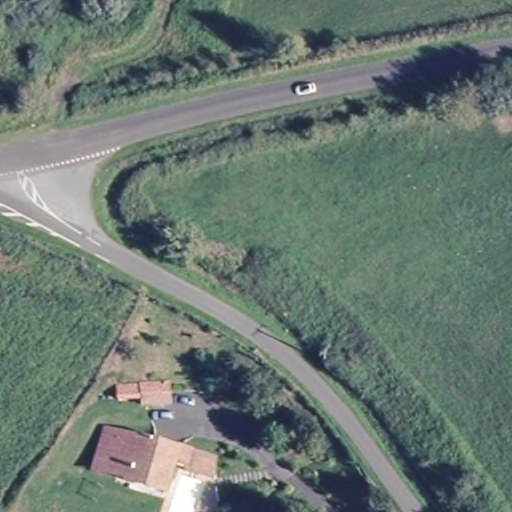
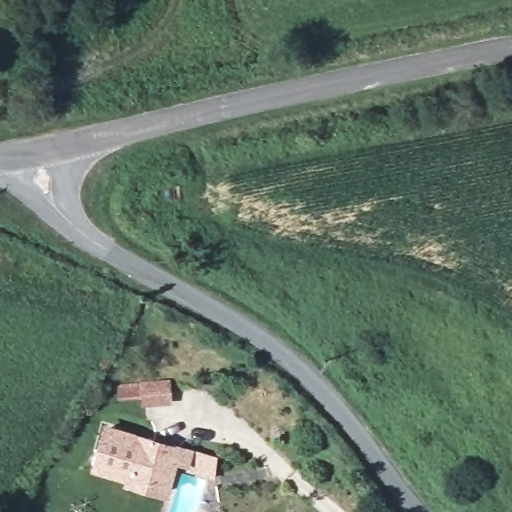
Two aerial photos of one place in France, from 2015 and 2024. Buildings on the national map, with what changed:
unchanged [(150,416),(150,410),(150,398),(176,399),(175,417),(150,416)]
unchanged [(212,478),(172,464),(168,479),(159,477),(155,492),(117,477),(119,470),(86,460),(102,418),(216,462),(212,478)]

